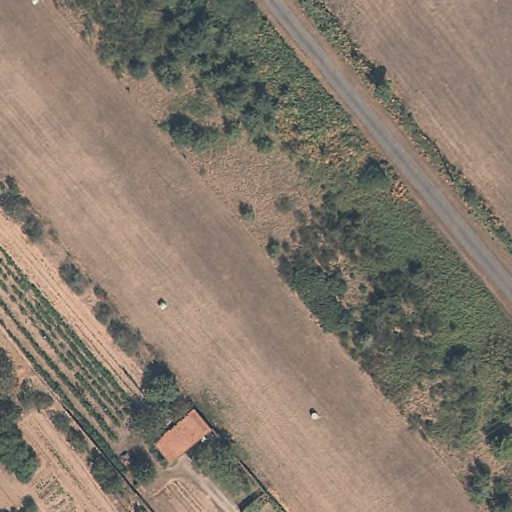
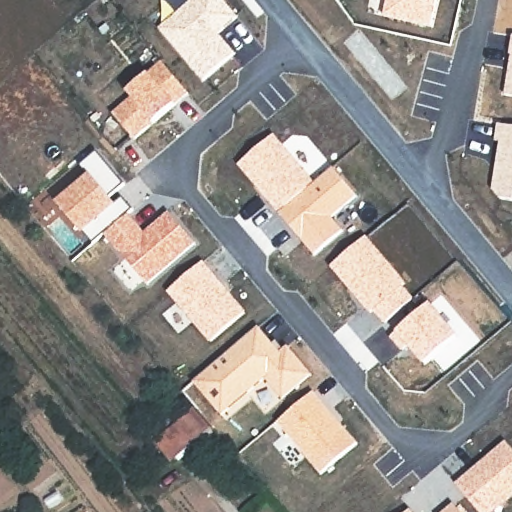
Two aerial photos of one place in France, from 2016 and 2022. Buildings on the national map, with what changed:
new [(192,1),(190,0),(224,0),(239,17),(219,34),(234,53),(202,82),(158,30),(192,1)]
new [(431,27),(383,17),(387,0),(437,0),(431,27)]
new [(511,56),(508,56),(512,36),(512,97),(505,95),(511,56)]
new [(162,63),(189,95),(131,143),(104,114),(162,63)]
new [(512,127),(512,202),(499,200),(491,190),(500,143),(495,142),(497,125),(512,127)]
new [(275,134),(315,184),(332,168),(357,197),(332,217),(343,229),(313,256),(238,166),(275,134)]
new [(128,214),(144,233),(169,213),(195,245),(147,285),(104,236),(128,214)]
new [(368,236),(406,282),(402,285),(415,299),(384,325),(373,311),(370,315),(331,268),(368,236)]
new [(202,261),(246,311),(209,343),(167,293),(202,261)]
new [(396,333),(431,304),(458,337),(424,366),(408,348),(402,354),(390,339),(396,333)]
new [(258,327),(272,344),(277,340),(284,351),(287,348),(310,375),(282,400),(265,380),(221,417),(193,382),(258,327)]
new [(314,392),(357,443),(320,475),(277,424),(314,392)]
unchanged [(215,426),(170,462),(156,440),(199,405),(215,426)]
new [(512,450),(512,498),(496,512),(477,512),(455,485),(506,441),(512,450)]
demolished [(159,512),(150,501),(174,478),(205,512),(159,512)]
new [(460,512),(444,512),(453,504),(460,512)]
new [(411,512),(407,512),(410,510),(411,512)]

